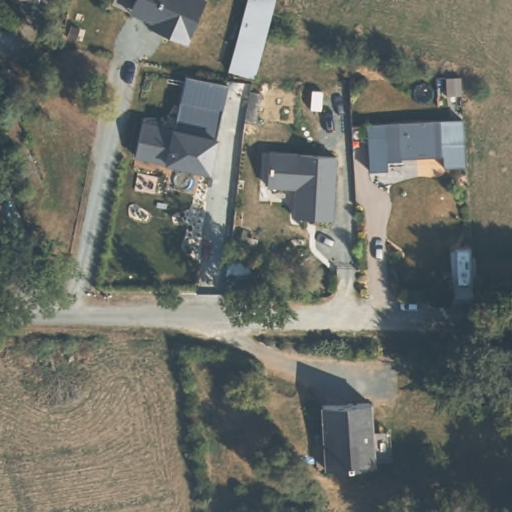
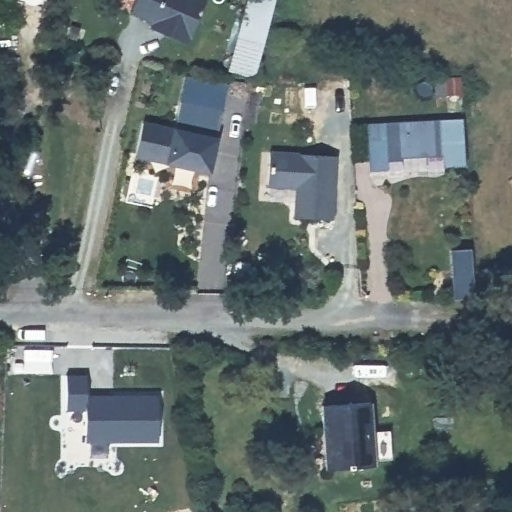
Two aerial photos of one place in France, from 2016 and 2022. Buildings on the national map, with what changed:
unchanged [(149,30),(152,22),(128,13),(132,0),(131,0),(208,0),(188,46),(149,30)]
unchanged [(227,73),(245,0),(274,0),(254,79),(227,73)]
unchanged [(217,138),(210,174),(164,165),(134,159),(142,121),(171,128),(178,129),(186,77),(228,84),(217,138)]
unchanged [(441,120),(443,156),(389,158),(389,166),(369,166),(368,120),(441,120)]
unchanged [(340,154),(336,219),(293,218),(294,192),(268,189),(270,149),(340,154)]
new [(86,410),(66,410),(65,374),(83,374),(88,395),(158,396),(159,442),(86,442),(86,410)]
unchanged [(373,464),(327,468),(322,407),(369,403),(373,464)]

